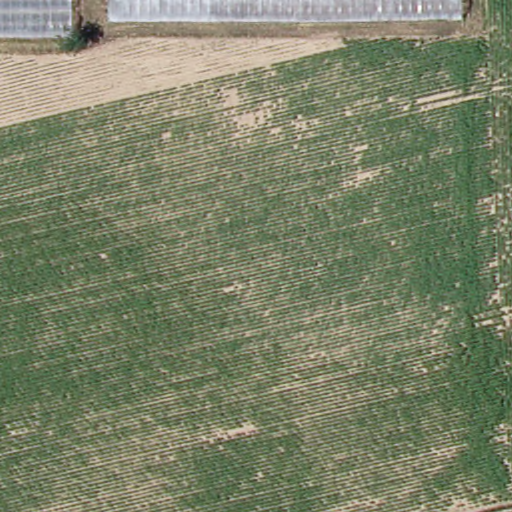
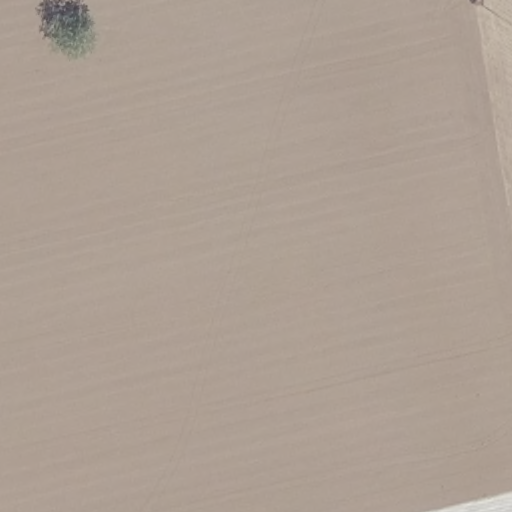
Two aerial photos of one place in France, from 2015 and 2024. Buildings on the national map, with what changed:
demolished [(76,30),(0,31),(0,0),(76,0),(76,30)]
demolished [(463,15),(111,19),(111,0),(463,0),(463,15)]

